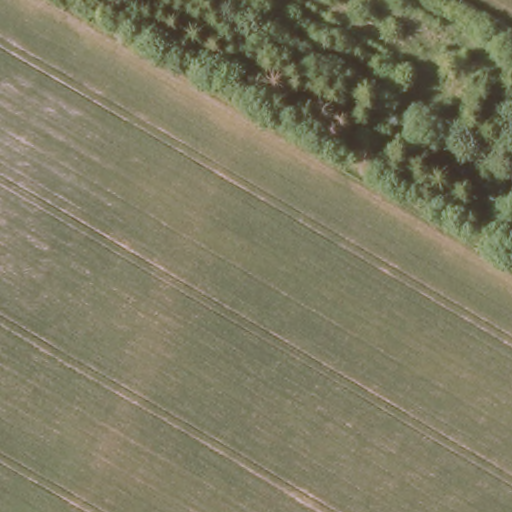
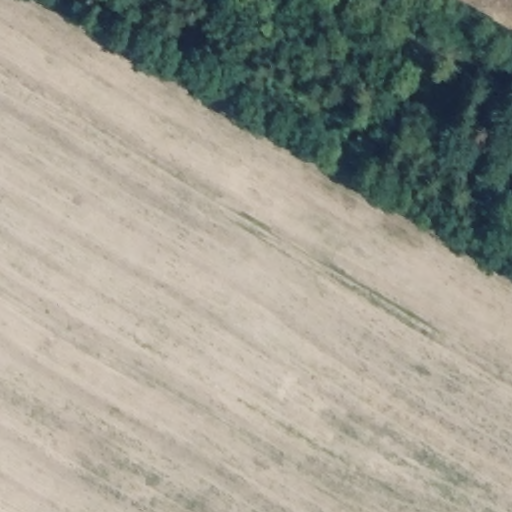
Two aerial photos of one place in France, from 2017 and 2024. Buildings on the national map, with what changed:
unchanged [(485,107),(500,80),(512,87),(512,99),(500,119),(485,107)]

